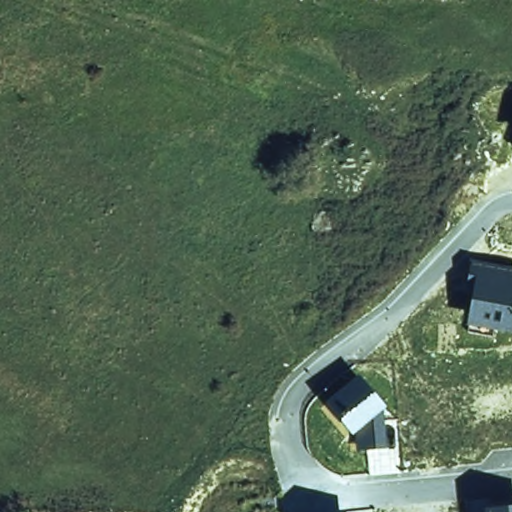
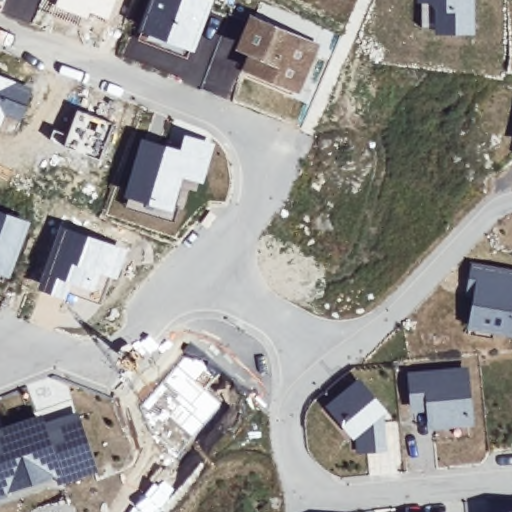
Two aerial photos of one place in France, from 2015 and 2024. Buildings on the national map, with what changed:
new [(138,29),(149,0),(214,0),(195,50),(138,29)]
new [(429,1),(417,2),(417,0),(474,0),(474,34),(435,32),(436,7),(429,1)]
new [(249,13),(320,43),(298,95),(239,71),(246,54),(233,49),(249,13)]
new [(20,121),(6,115),(1,125),(0,125),(0,74),(34,89),(20,121)]
new [(77,107),(115,123),(99,161),(61,144),(77,107)]
new [(182,150),(186,135),(213,144),(203,181),(184,176),(175,209),(124,195),(141,138),(182,150)]
new [(31,221),(10,275),(0,272),(0,210),(31,221)]
new [(60,224),(88,233),(128,247),(116,280),(103,275),(96,292),(72,283),(65,298),(37,286),(43,270),(60,224)]
unchanged [(475,282),(467,281),(470,265),(512,270),(512,337),(468,330),(475,282)]
new [(152,434),(138,408),(188,353),(216,378),(206,390),(223,406),(193,440),(177,458),(152,434)]
new [(407,371),(469,366),(474,425),(429,430),(427,410),(411,413),(407,371)]
unchanged [(358,435),(354,438),(329,406),(357,378),(387,410),(388,450),(360,452),(358,435)]
new [(47,421),(79,410),(100,471),(58,485),(54,475),(0,493),(0,426),(42,411),(47,421)]
unchanged [(512,511),(512,512),(505,512),(512,511)]

